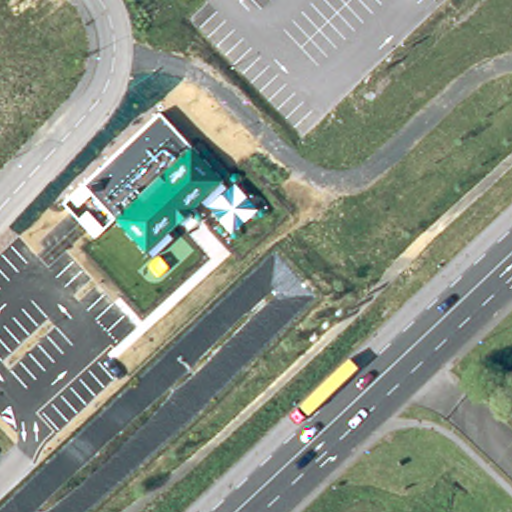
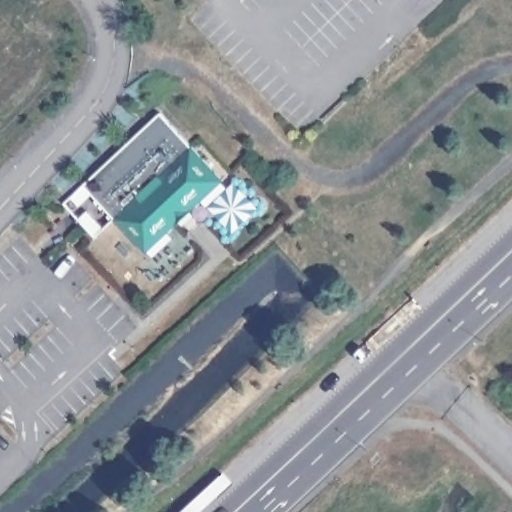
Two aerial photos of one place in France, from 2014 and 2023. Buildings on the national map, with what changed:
unchanged [(224,180),(147,252),(83,184),(160,112),(224,180)]

